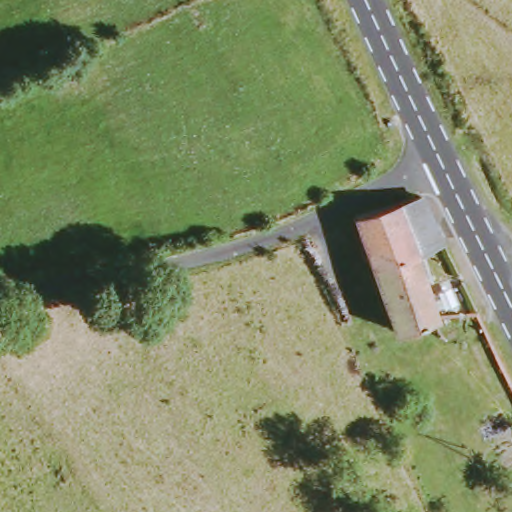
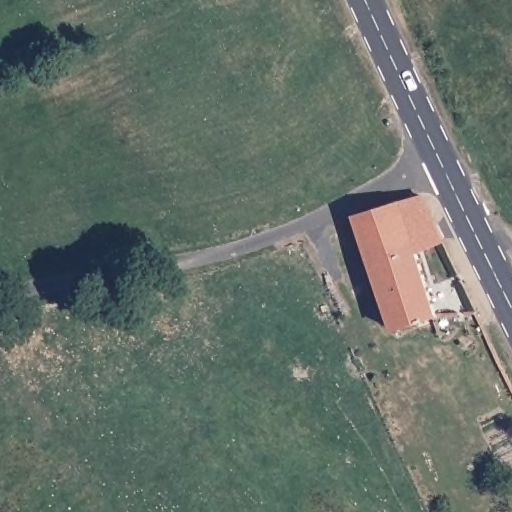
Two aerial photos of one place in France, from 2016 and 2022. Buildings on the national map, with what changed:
unchanged [(421,197),(439,245),(415,255),(437,307),(396,326),(353,213),(421,197)]

